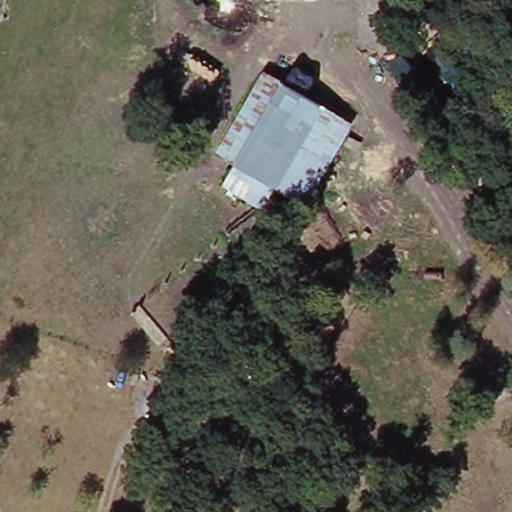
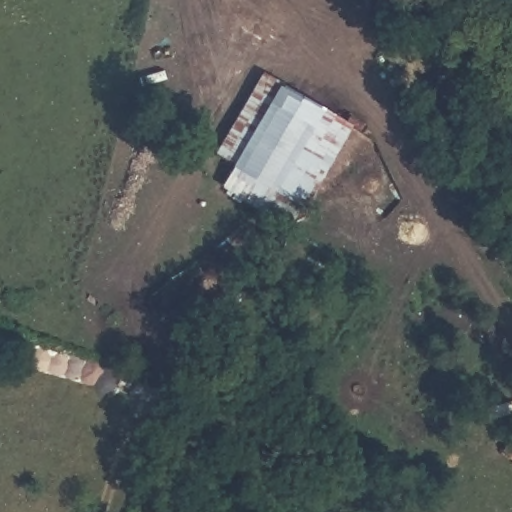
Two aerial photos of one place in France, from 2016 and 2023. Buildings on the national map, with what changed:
unchanged [(256,96),(274,107),(284,88),(356,126),(312,210),(282,195),(272,214),(226,192),(241,168),(221,156),(256,96)]

